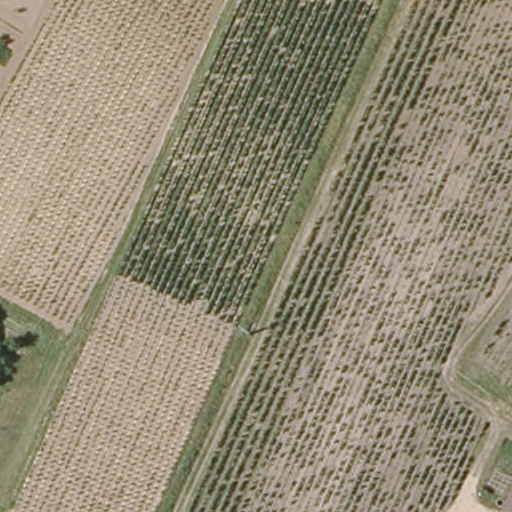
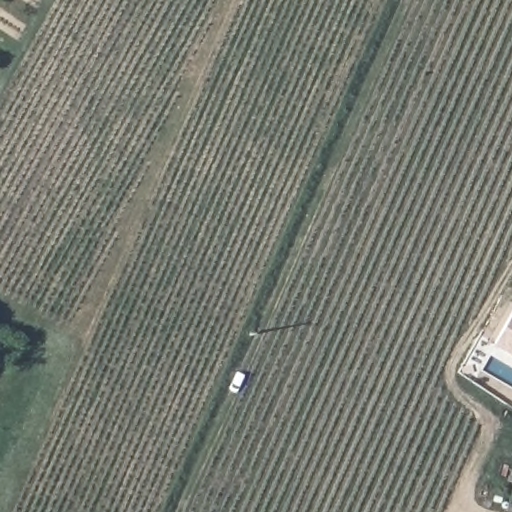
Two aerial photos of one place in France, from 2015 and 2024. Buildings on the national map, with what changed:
new [(512,312),(512,355),(493,345),(512,312)]
unchanged [(512,512),(504,512),(512,492),(512,512)]

